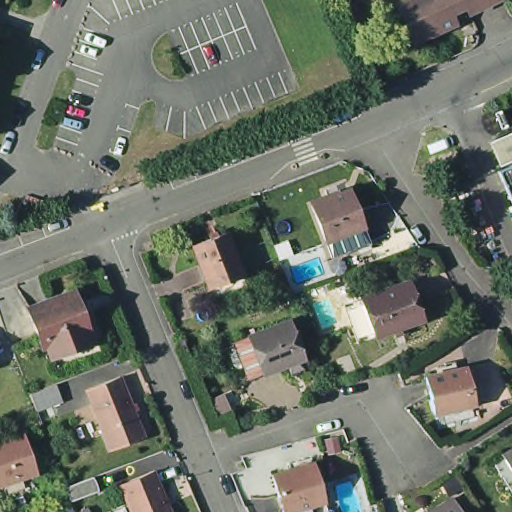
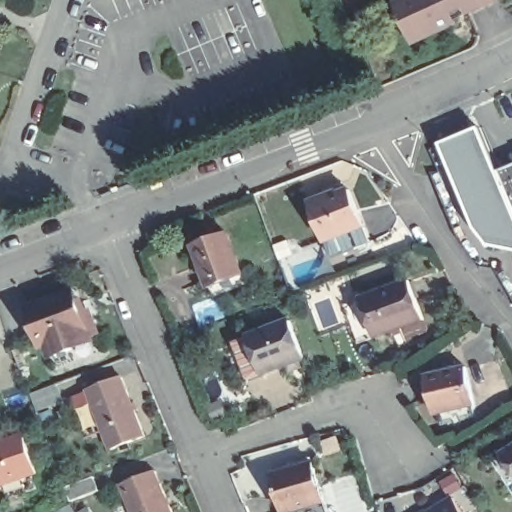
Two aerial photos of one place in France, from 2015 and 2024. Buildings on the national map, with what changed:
unchanged [(500,0),(504,7),(469,22),(466,15),(448,23),(453,34),(415,50),(398,11),(422,0),(500,0)]
new [(504,203),(512,223),(512,251),(482,246),(470,232),(432,142),(471,127),(493,178),(504,203)]
unchanged [(512,170),(512,199),(504,203),(493,178),(512,170)]
unchanged [(354,193),(368,229),(330,242),(317,207),(354,193)]
unchanged [(512,223),(504,203),(512,199),(512,223)]
unchanged [(221,240),(235,278),(202,290),(187,252),(221,240)]
unchanged [(412,287),(427,325),(379,343),(365,305),(412,287)]
unchanged [(67,355),(45,362),(40,351),(36,352),(22,315),(67,298),(71,309),(75,308),(79,320),(83,318),(91,340),(85,342),(87,347),(67,355)]
unchanged [(290,366),(287,360),(262,370),(247,333),(289,317),(302,353),(298,355),(300,361),(290,366)]
unchanged [(120,373),(143,433),(109,446),(85,386),(120,373)]
unchanged [(465,375),(474,412),(434,420),(425,384),(465,375)]
unchanged [(35,403),(29,390),(55,380),(61,396),(35,406),(35,403)]
unchanged [(29,441),(41,480),(0,493),(0,451),(29,441)]
unchanged [(512,475),(510,476),(500,460),(512,453),(512,475)]
unchanged [(313,470),(324,508),(310,512),(281,512),(272,481),(313,470)]
unchanged [(149,472),(165,512),(125,512),(115,486),(149,472)]
unchanged [(98,487),(70,497),(65,483),(92,473),(98,487)]
unchanged [(446,495),(457,512),(418,512),(446,495)]

